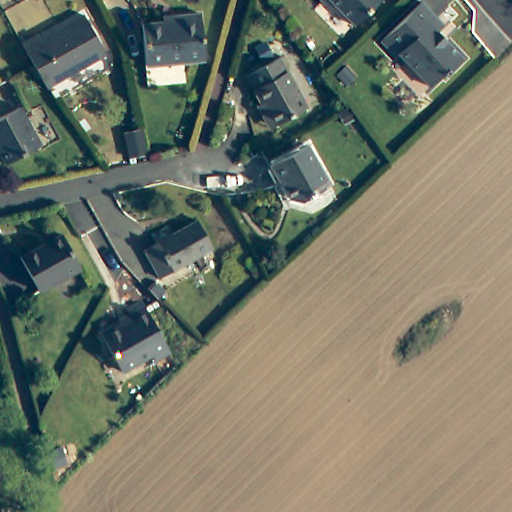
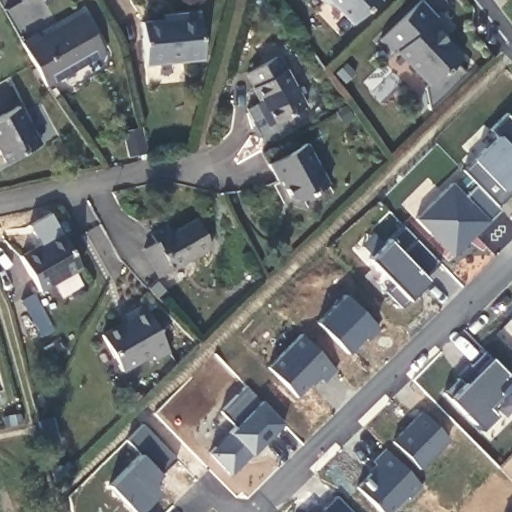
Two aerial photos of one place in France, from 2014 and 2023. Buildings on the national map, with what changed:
unchanged [(331,1),(325,0),(376,0),(352,22),(331,1)]
unchanged [(416,2),(438,26),(432,32),(444,46),(456,59),(440,75),(438,73),(425,87),(413,75),(405,66),(407,64),(399,53),(392,59),(377,40),(416,2)]
unchanged [(40,29),(44,36),(68,21),(66,17),(82,7),(106,46),(50,82),(34,58),(22,39),(40,29)]
unchanged [(176,20),(176,12),(201,10),(205,60),(146,64),(142,23),(176,20)]
unchanged [(276,55),(305,104),(277,124),(256,90),(258,88),(248,74),(276,55)]
unchanged [(21,102),(40,141),(4,159),(0,150),(0,114),(21,102)]
new [(463,171),(496,138),(490,130),(506,114),(512,120),(512,193),(497,207),(463,171)]
unchanged [(143,160),(126,163),(121,139),(138,135),(143,160)]
unchanged [(304,147),(315,167),(326,187),(293,205),(286,195),(279,182),(277,184),(268,169),(304,147)]
new [(451,257),(414,219),(450,182),(464,196),(475,185),(500,210),(451,257)]
unchanged [(154,241),(149,231),(165,222),(171,232),(197,219),(212,247),(159,276),(143,247),(154,241)]
new [(439,262),(425,277),(428,280),(400,307),(384,291),(392,284),(367,259),(402,225),(439,262)]
unchanged [(64,232),(84,266),(45,288),(25,254),(64,232)]
unchanged [(134,318),(132,315),(144,307),(153,321),(174,352),(161,362),(157,356),(129,374),(116,355),(105,337),(134,318)]
new [(512,317),(512,323),(509,320),(512,317)]
new [(323,382),(316,376),(295,397),(266,367),(300,334),(335,371),(323,382)]
new [(512,383),(487,407),(494,415),(478,431),(441,393),(457,378),(463,384),(474,372),(468,367),(484,351),(512,379),(512,383)]
new [(463,384),(455,376),(467,365),(474,372),(463,384)]
new [(282,423),(229,475),(207,453),(234,427),(219,412),(245,386),(282,423)]
new [(456,426),(445,436),(448,439),(418,468),(391,442),(422,412),(424,415),(435,405),(456,426)]
new [(141,457),(125,441),(142,425),(176,459),(150,484),(158,492),(153,498),(155,500),(143,512),(133,512),(109,488),(141,457)]
new [(421,487),(408,499),(405,496),(389,512),(379,512),(355,487),(377,466),(372,461),(384,448),(421,487)]

